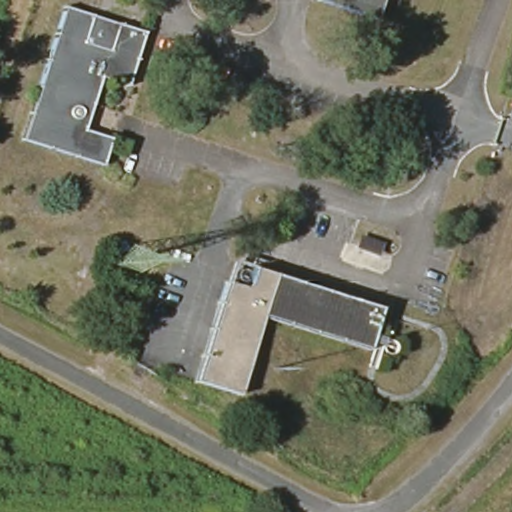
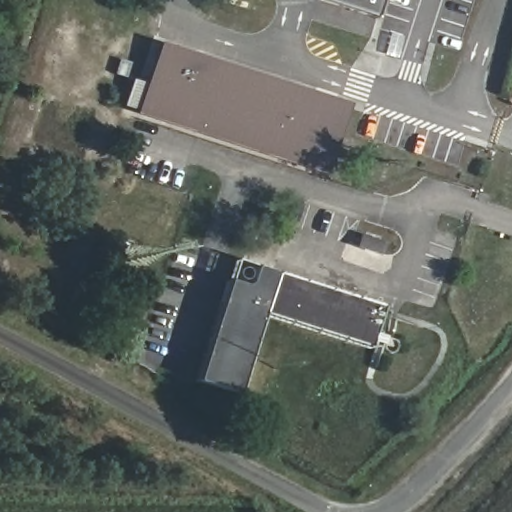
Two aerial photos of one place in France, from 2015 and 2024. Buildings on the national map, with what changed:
unchanged [(326,0),(380,0),(374,16),(326,0)]
demolished [(127,85),(101,76),(84,130),(110,139),(101,165),(23,139),(66,10),(143,34),(127,85)]
new [(325,175),(134,112),(156,44),(348,105),(325,175)]
unchanged [(380,310),(365,351),(263,318),(237,395),(196,380),(219,311),(235,264),(261,272),(380,310)]

